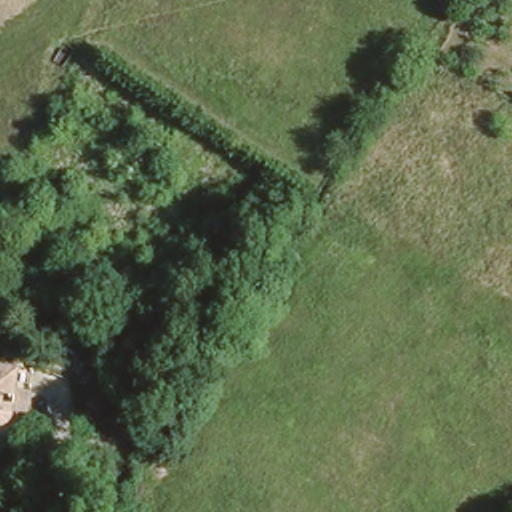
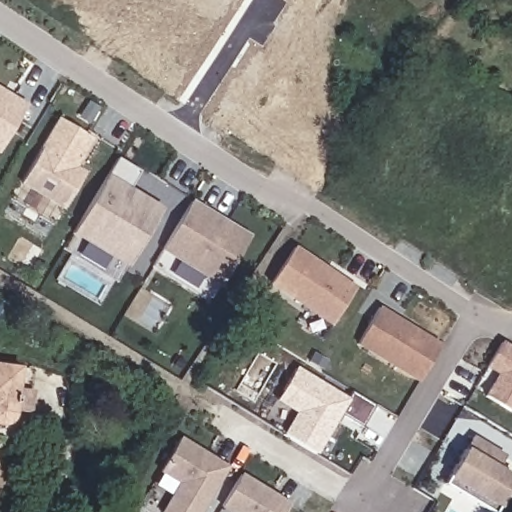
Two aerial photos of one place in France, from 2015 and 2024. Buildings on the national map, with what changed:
new [(26,107),(0,150),(0,91),(26,107)]
new [(63,120),(95,140),(81,162),(77,158),(72,166),(87,175),(66,209),(24,183),(63,120)]
new [(122,159),(144,173),(132,191),(166,211),(131,268),(76,234),(111,177),(122,159)]
new [(162,250),(191,202),(250,236),(221,285),(162,250)]
new [(297,249),(358,290),(335,326),(273,285),(297,249)]
new [(355,346),(378,306),(443,347),(421,385),(355,346)]
new [(505,383),(508,377),(492,367),(506,343),(507,345),(512,347),(512,410),(490,397),(500,380),(505,383)]
unchanged [(7,407),(7,409),(5,414),(3,416),(0,417),(0,362),(13,364),(11,384),(28,386),(25,409),(7,407)]
new [(283,435),(297,412),(277,400),(295,371),(346,402),(315,454),(283,435)]
new [(472,437),(505,456),(497,470),(512,479),(512,485),(495,512),(489,512),(443,485),(472,437)]
new [(164,471),(184,438),(231,467),(203,512),(164,512),(182,483),(164,471)]
new [(288,504),(283,512),(218,512),(240,476),(288,504)]
unchanged [(67,512),(72,502),(94,512),(67,512)]

